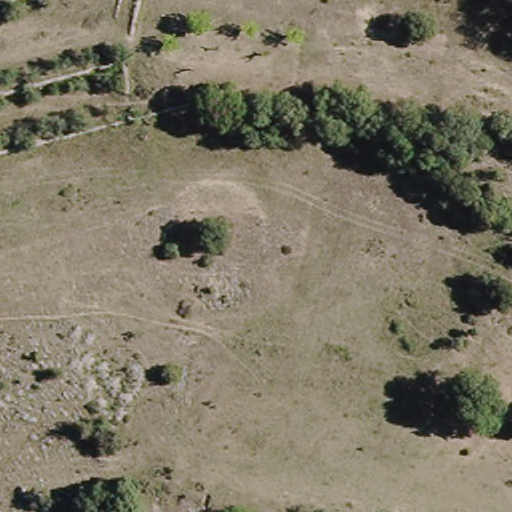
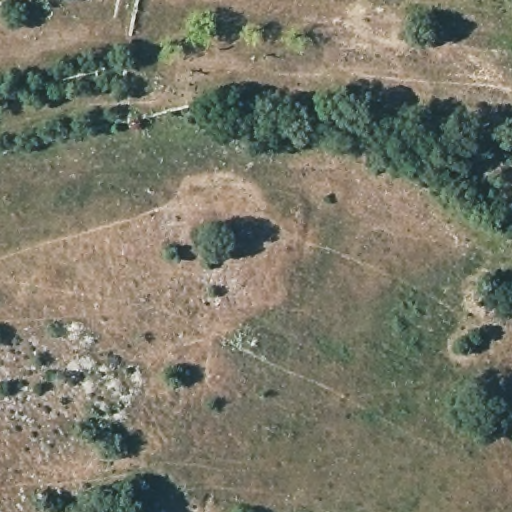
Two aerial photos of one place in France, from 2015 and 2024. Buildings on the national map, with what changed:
[]

